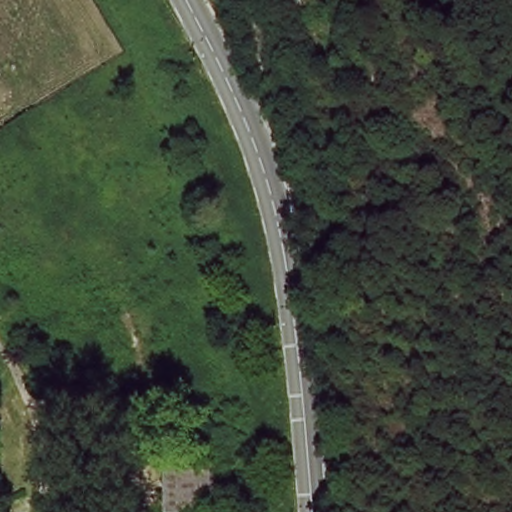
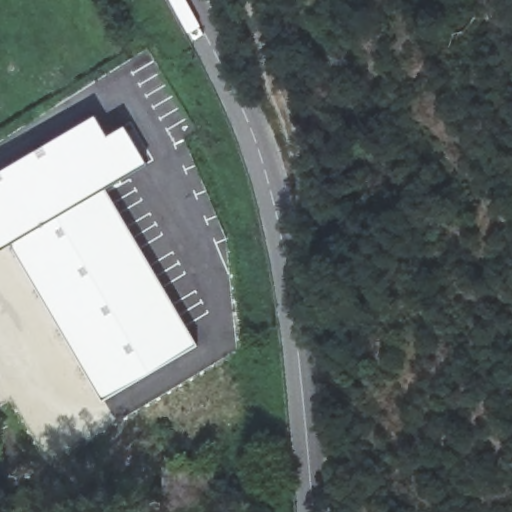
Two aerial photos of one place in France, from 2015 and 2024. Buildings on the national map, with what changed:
new [(107,134),(124,125),(146,161),(105,186),(10,243),(0,248),(0,169),(95,114),(107,134)]
new [(105,186),(198,345),(103,401),(10,243),(105,186)]
unchanged [(161,455),(195,452),(194,439),(211,438),(216,509),(165,512),(161,455)]

